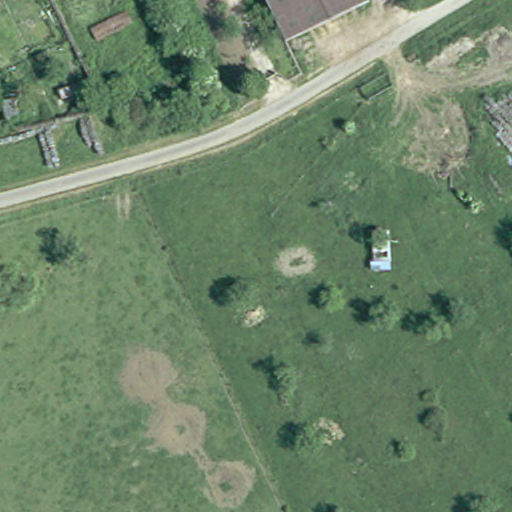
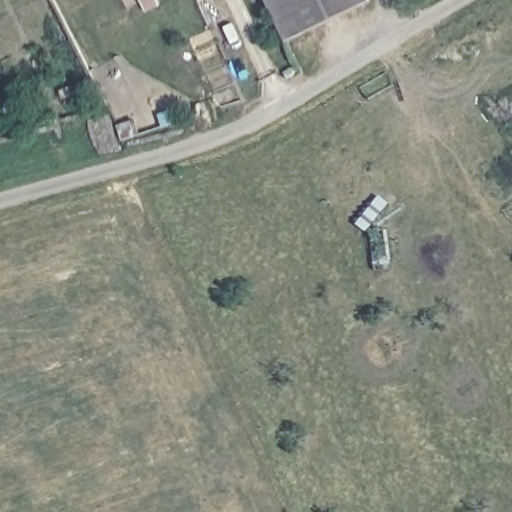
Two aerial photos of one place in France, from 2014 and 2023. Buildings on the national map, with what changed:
unchanged [(149,9),(145,0),(158,0),(160,5),(149,9)]
unchanged [(370,0),(288,41),(269,0),(370,0)]

